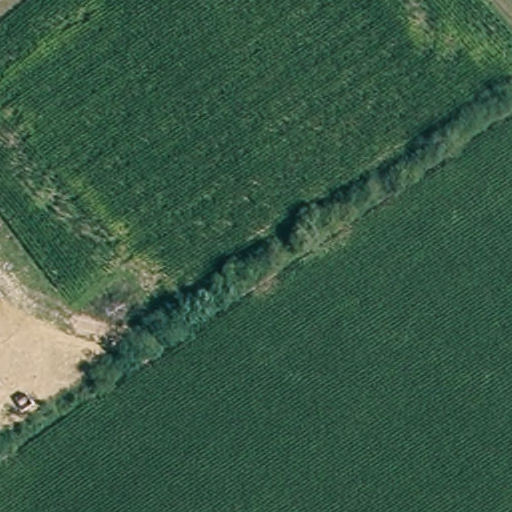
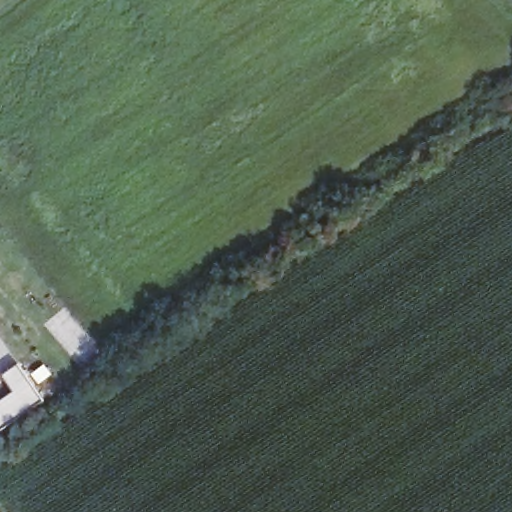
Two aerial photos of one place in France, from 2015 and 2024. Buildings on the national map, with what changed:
new [(0,430),(0,402),(15,392),(3,376),(18,365),(42,400),(0,430)]

